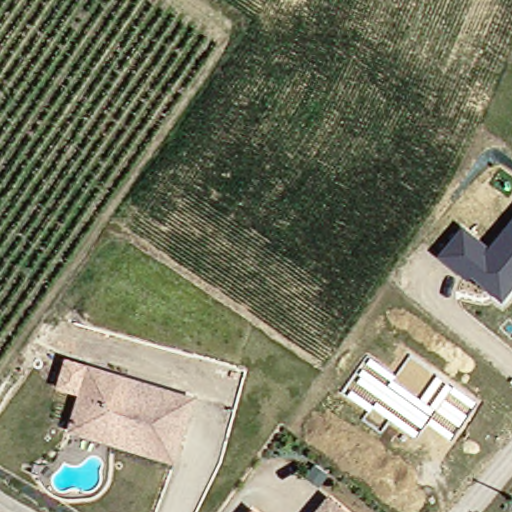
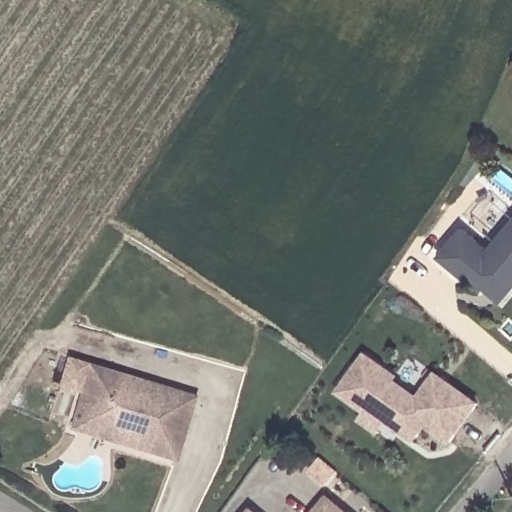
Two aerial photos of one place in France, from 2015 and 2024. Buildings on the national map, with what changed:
unchanged [(507,305),(434,255),(459,225),(487,246),(512,220),(512,300),(507,305)]
new [(419,396),(436,372),(482,404),(453,445),(428,429),(417,443),(390,425),(382,435),(359,421),(364,413),(339,393),(366,352),(400,376),(398,381),(419,396)]
unchanged [(55,395),(64,363),(84,369),(76,400),(55,395)]
unchanged [(150,441),(71,418),(84,369),(192,400),(174,461),(146,454),(150,441)]
unchanged [(68,432),(71,418),(150,441),(146,454),(68,432)]
unchanged [(329,497),(347,512),(317,512),(329,497)]
unchanged [(253,511),(254,512),(252,512),(253,511)]

